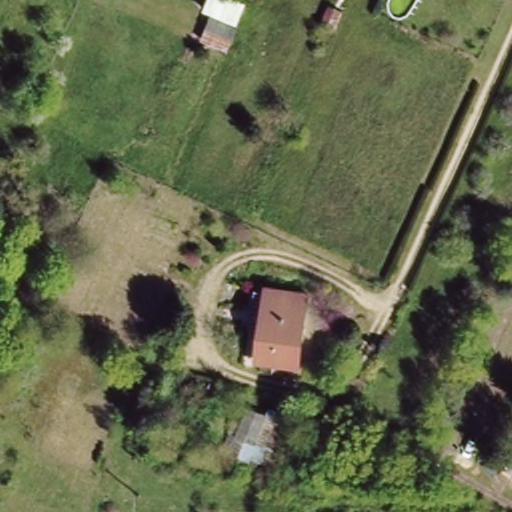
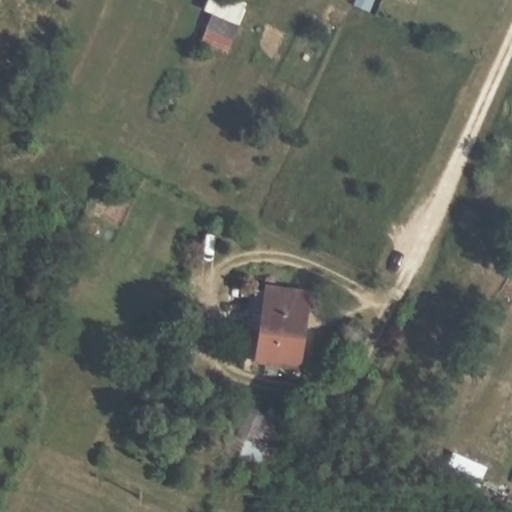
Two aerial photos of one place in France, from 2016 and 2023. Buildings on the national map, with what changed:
unchanged [(270,323),(259,322),(260,304),(275,305),(276,286),(309,288),(303,359),(267,356),(270,323)]
unchanged [(237,437),(249,411),(267,419),(254,445),(237,437)]

